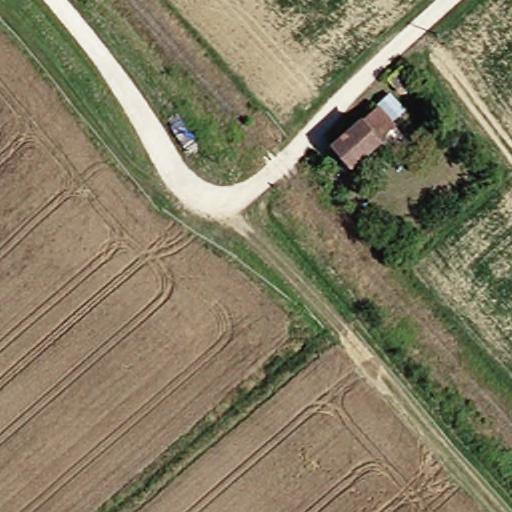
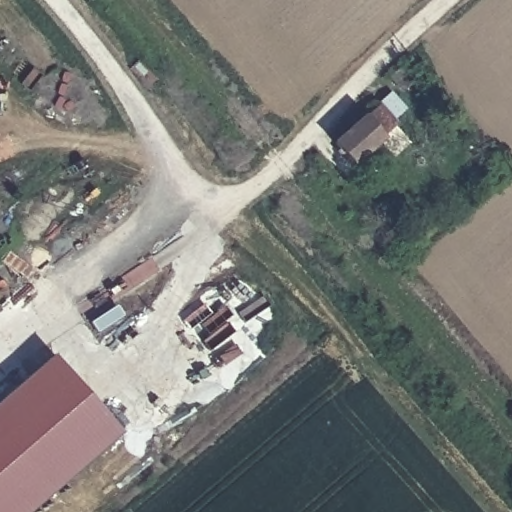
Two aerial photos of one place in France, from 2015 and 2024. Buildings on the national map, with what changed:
unchanged [(401,66),(415,80),(402,91),(390,76),(401,66)]
unchanged [(389,93),(402,108),(391,118),(378,103),(389,93)]
unchanged [(395,156),(380,139),(353,163),(335,144),(377,105),(395,124),(411,141),(395,156)]
new [(120,435),(31,512),(0,512),(0,401),(52,356),(120,435)]

